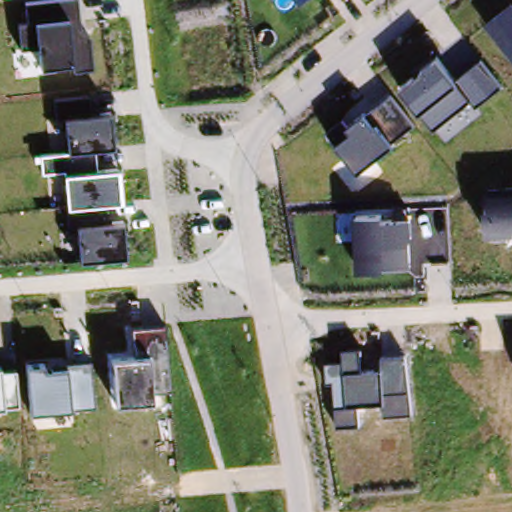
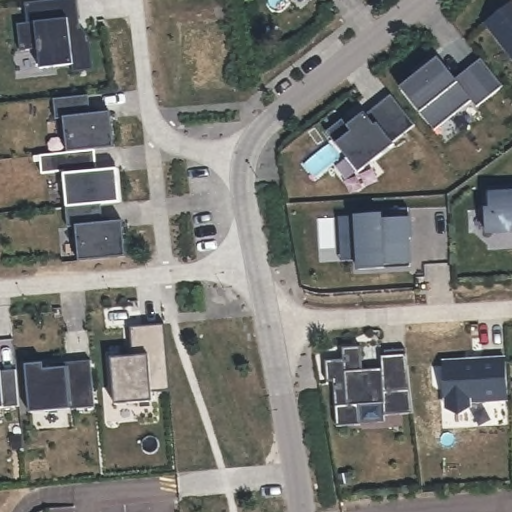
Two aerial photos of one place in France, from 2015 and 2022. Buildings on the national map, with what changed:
unchanged [(52,0),(78,0),(82,28),(90,36),(94,69),(72,71),(72,63),(40,67),(37,45),(22,47),(20,21),(29,19),(27,3),(52,0)]
unchanged [(302,3),(300,0),(306,0),(302,3)]
unchanged [(488,23),(512,5),(512,55),(488,23)]
unchanged [(454,78),(482,59),(502,86),(477,106),(472,99),(434,129),(401,89),(437,58),(454,78)]
unchanged [(412,125),(392,139),(396,144),(360,171),(328,132),(344,119),(349,123),(367,111),(389,96),(412,125)]
unchanged [(112,111),(115,146),(95,148),(97,171),(118,169),(122,202),(104,204),(105,221),(124,219),(127,256),(80,260),(77,224),(75,207),(67,208),(65,173),(64,171),(42,174),(40,156),(67,151),(64,114),(112,111)]
unchanged [(512,187),(512,235),(487,235),(485,208),(490,208),(491,188),(512,187)]
unchanged [(384,213),(384,216),(410,217),(410,266),(355,268),(355,214),(384,213)]
unchanged [(135,358),(132,328),(165,325),(170,388),(151,388),(152,400),(115,402),(112,359),(135,358)]
unchanged [(343,359),(342,347),(360,347),(362,367),(382,366),(380,353),(408,351),(412,411),(385,412),(385,400),(360,402),(361,424),(337,425),(335,381),(327,382),(327,360),(343,359)]
new [(505,359),(508,400),(470,402),(470,407),(459,414),(446,408),(444,362),(505,359)]
unchanged [(43,364),(44,367),(67,364),(90,361),(95,405),(71,406),(30,411),(27,365),(43,364)]
unchanged [(17,406),(4,406),(0,407),(0,371),(16,369),(17,406)]

